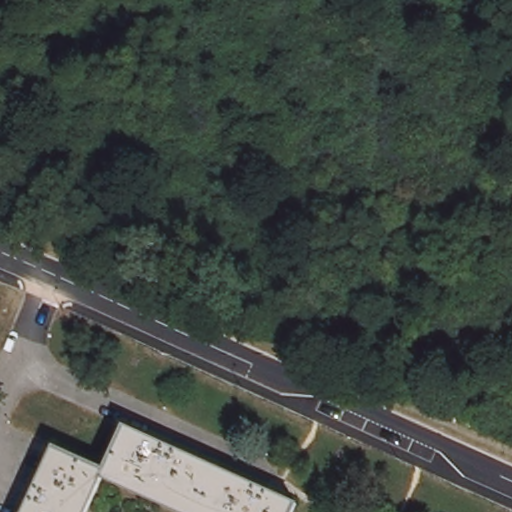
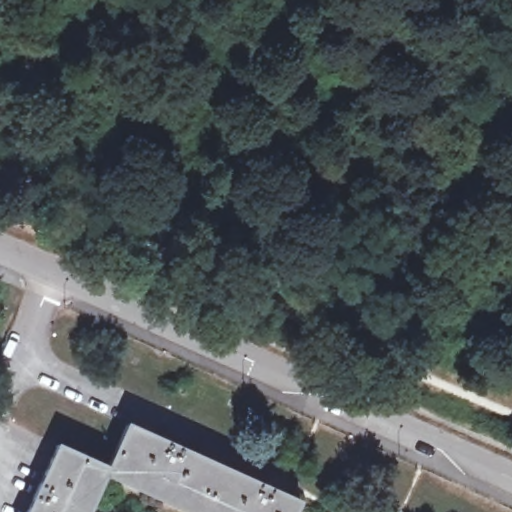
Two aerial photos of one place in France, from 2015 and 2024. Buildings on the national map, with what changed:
unchanged [(128,425),(299,502),(295,512),(188,512),(106,475),(88,512),(28,512),(59,445),(109,468),(128,425)]

